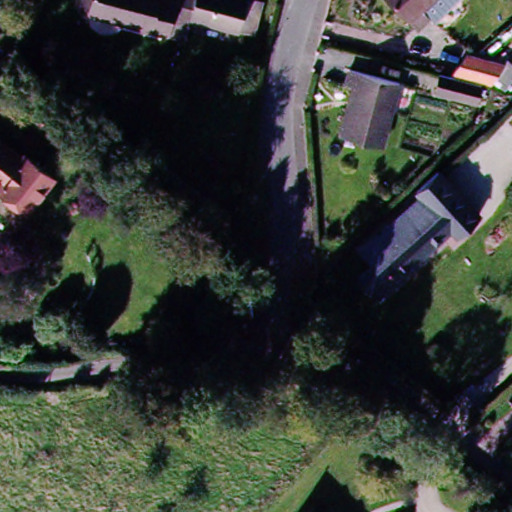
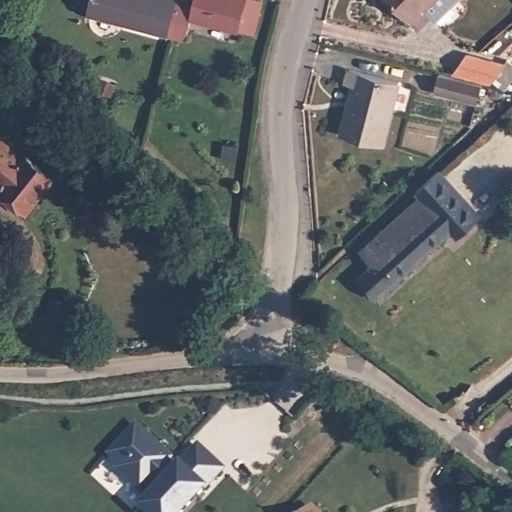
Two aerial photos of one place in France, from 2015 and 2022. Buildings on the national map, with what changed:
unchanged [(167,29),(91,8),(94,0),(176,0),(167,29)]
unchanged [(176,0),(248,0),(241,27),(195,14),(189,35),(167,29),(176,0)]
unchanged [(430,22),(425,17),(412,28),(386,0),(454,0),(430,22)]
unchanged [(512,69),(512,74),(497,89),(488,78),(485,81),(449,72),(465,54),(500,63),(504,59),(512,69)]
unchanged [(430,94),(436,74),(477,85),(471,105),(430,94)]
unchanged [(357,94),(349,91),(353,79),(402,94),(385,152),(344,140),(357,94)]
unchanged [(50,182),(19,209),(0,188),(0,179),(28,155),(50,182)]
unchanged [(424,201),(419,196),(440,175),(457,193),(467,205),(482,219),(459,240),(454,234),(380,303),(378,301),(362,283),(376,270),(364,257),(374,248),(408,216),(421,204),(424,201)]
new [(164,450),(161,454),(170,462),(191,439),(216,461),(169,512),(147,512),(135,500),(153,480),(145,471),(135,482),(112,462),(115,458),(104,447),(130,419),(164,450)]

